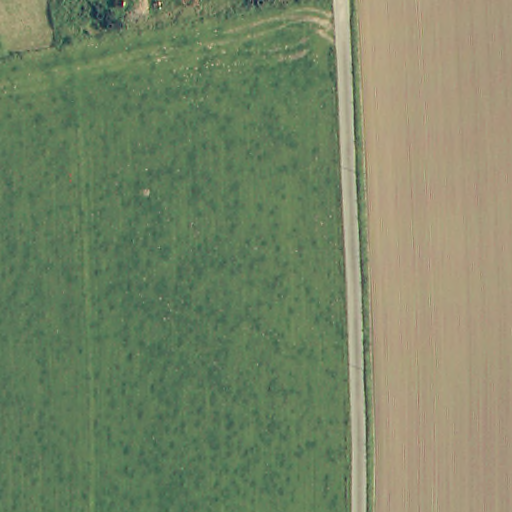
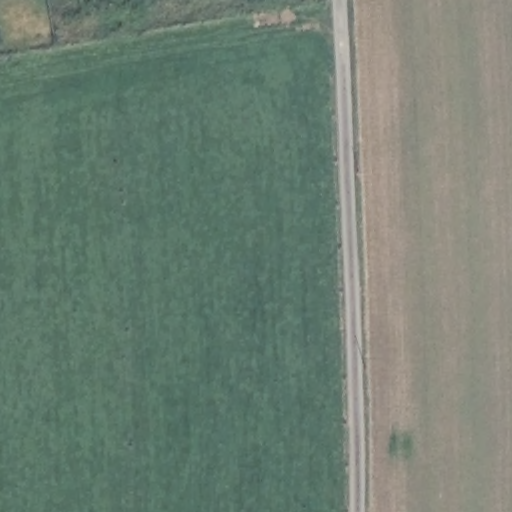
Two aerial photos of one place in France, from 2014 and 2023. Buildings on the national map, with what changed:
[]

